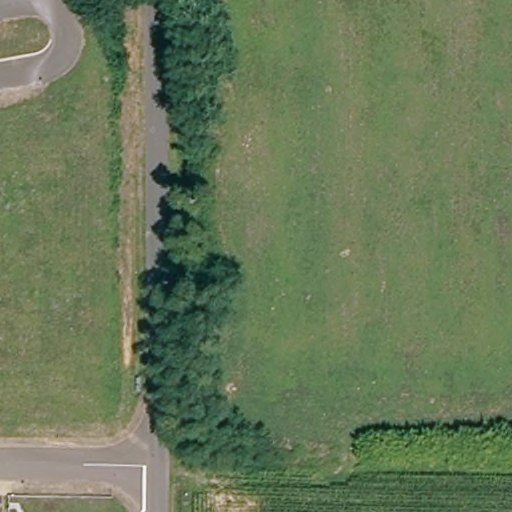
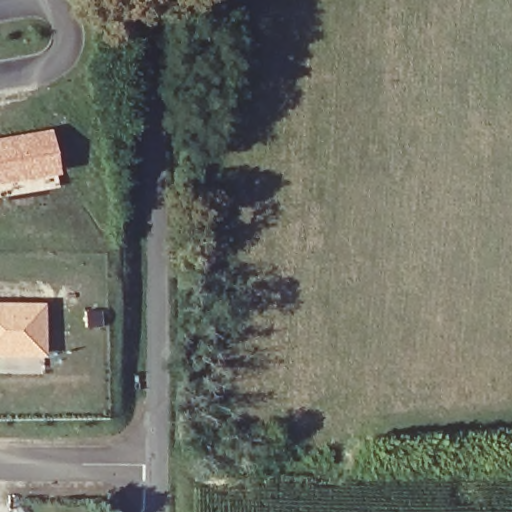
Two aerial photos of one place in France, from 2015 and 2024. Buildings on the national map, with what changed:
new [(51,127),(57,174),(0,185),(0,136),(51,127)]
new [(45,301),(44,357),(0,357),(0,301),(45,301)]

